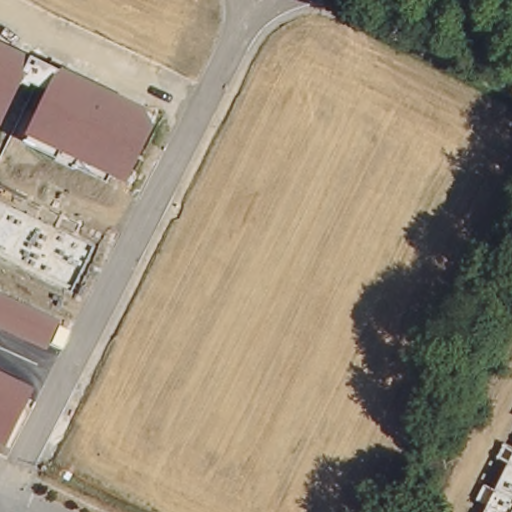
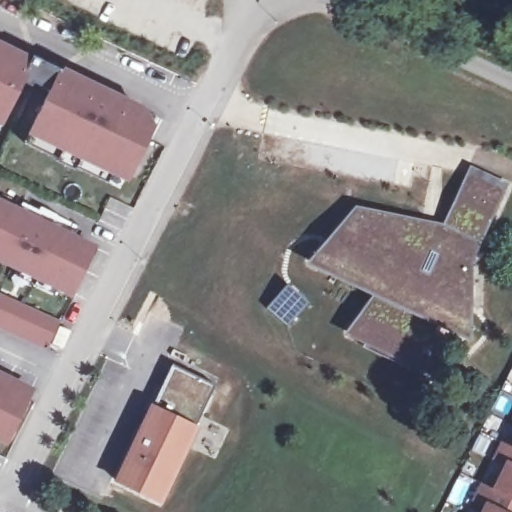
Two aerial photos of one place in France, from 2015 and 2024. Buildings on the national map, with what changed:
unchanged [(111,175),(107,182),(75,167),(75,169),(55,161),(57,157),(22,141),(45,94),(22,82),(2,125),(0,124),(0,39),(145,105),(154,124),(127,182),(111,175)]
new [(441,224),(467,165),(508,183),(470,262),(470,342),(435,324),(420,372),(343,333),(370,294),(305,263),(352,206),(441,224)]
unchanged [(92,247),(71,292),(0,258),(0,201),(92,247)]
new [(288,285),(310,303),(288,328),(267,309),(288,285)]
unchanged [(62,320),(59,325),(71,331),(63,349),(52,343),(47,351),(0,329),(0,292),(62,320)]
new [(160,505),(116,485),(172,366),(217,387),(160,505)]
unchanged [(0,441),(0,371),(33,387),(7,443),(0,441)]
unchanged [(487,504),(476,501),(485,484),(495,489),(507,463),(497,458),(504,443),(512,447),(512,510),(511,512),(483,512),(487,504)]

